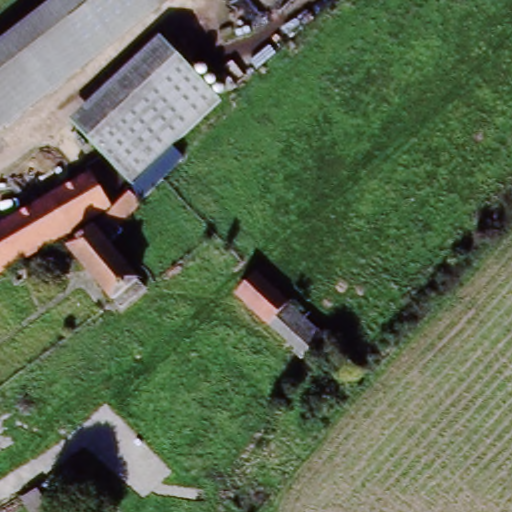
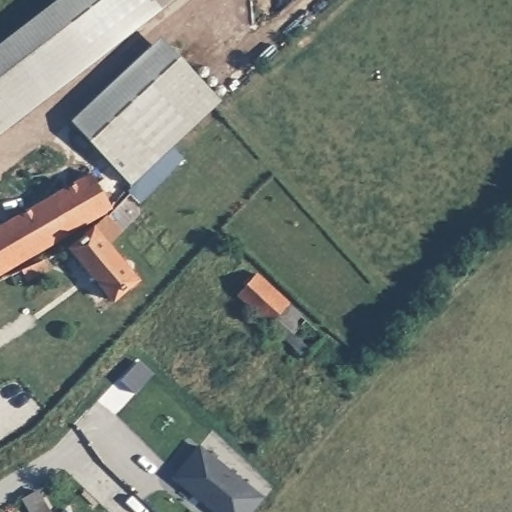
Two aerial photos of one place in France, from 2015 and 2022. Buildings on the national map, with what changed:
unchanged [(21,26),(24,24),(55,0),(155,0),(160,6),(71,74),(1,126),(0,125),(0,42),(21,26)]
unchanged [(161,6),(160,6),(155,0),(169,0),(161,6)]
unchanged [(171,143),(154,158),(150,164),(131,187),(69,122),(161,38),(194,73),(206,64),(229,93),(174,146),(171,143)]
unchanged [(90,227),(109,210),(120,199),(150,164),(154,158),(171,143),(184,156),(163,177),(116,222),(122,228),(108,241),(146,286),(123,305),(115,296),(71,244),(89,228),(90,227)]
unchanged [(92,169),(96,177),(107,171),(120,196),(110,201),(112,204),(0,268),(0,223),(92,169)]
unchanged [(27,275),(23,265),(42,257),(46,266),(27,275)]
unchanged [(231,292),(251,269),(318,333),(299,353),(231,292)]
new [(200,449),(263,502),(255,512),(212,512),(199,501),(174,480),(200,449)]
unchanged [(28,512),(21,500),(36,486),(53,512),(28,512)]

